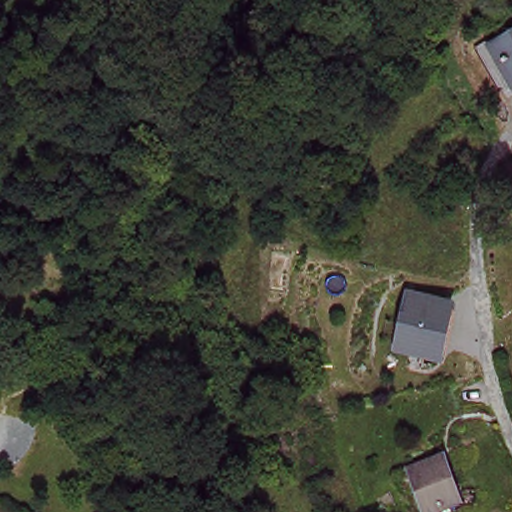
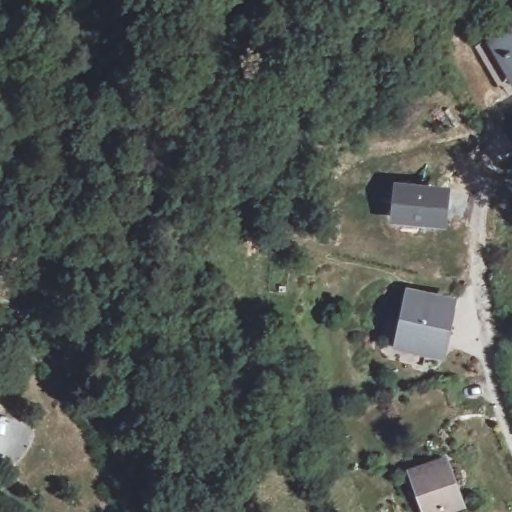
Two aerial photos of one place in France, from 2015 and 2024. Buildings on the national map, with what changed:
unchanged [(512,30),(512,84),(487,45),(512,30)]
new [(393,181),(452,187),(447,229),(390,224),(393,181)]
unchanged [(422,355),(402,351),(409,297),(455,303),(450,348),(448,357),(422,355)]
unchanged [(407,467),(437,455),(453,492),(423,505),(407,467)]

